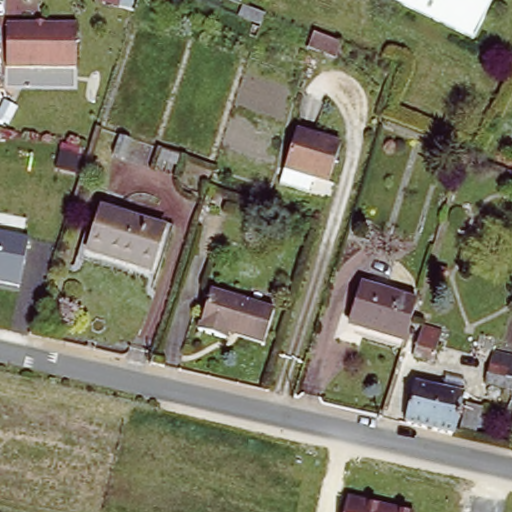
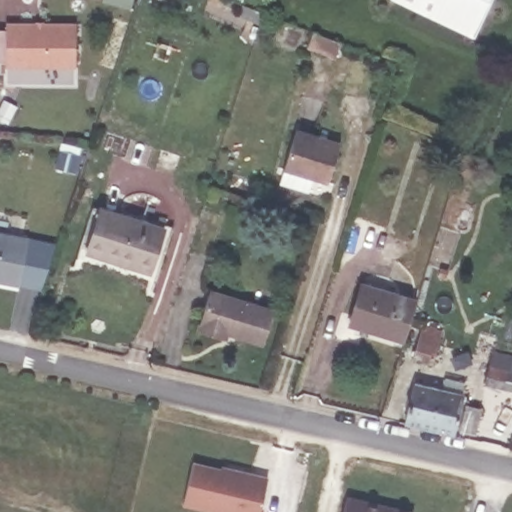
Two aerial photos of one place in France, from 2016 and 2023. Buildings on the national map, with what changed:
unchanged [(393,0),(492,0),(473,39),(393,0)]
unchanged [(247,7),(259,12),(256,21),(243,18),(247,7)]
unchanged [(8,22),(76,21),(76,66),(7,66),(8,22)]
unchanged [(314,33),(341,44),(336,57),(308,48),(314,33)]
unchanged [(283,178),(288,165),(302,128),(341,143),(327,181),(314,176),(309,189),(283,178)]
unchanged [(97,214),(161,236),(148,275),(85,253),(97,214)]
unchanged [(19,286),(0,282),(0,234),(29,239),(19,286)]
new [(29,239),(55,245),(40,289),(19,285),(29,239)]
unchanged [(361,281),(417,298),(411,317),(402,344),(348,327),(361,281)]
unchanged [(215,334),(196,327),(209,286),(270,306),(259,340),(225,329),(223,336),(215,334)]
unchanged [(417,328),(437,334),(427,364),(407,358),(417,328)]
unchanged [(492,354),(512,360),(512,392),(483,384),(492,354)]
unchanged [(410,386),(434,393),(438,383),(454,388),(451,399),(459,401),(448,437),(399,424),(410,386)]
unchanged [(462,413),(476,417),(469,441),(454,437),(462,413)]
new [(194,462),(222,468),(222,466),(269,477),(261,512),(204,512),(183,507),(194,462)]
unchanged [(346,495),(383,504),(413,512),(412,512),(342,512),(346,495)]

